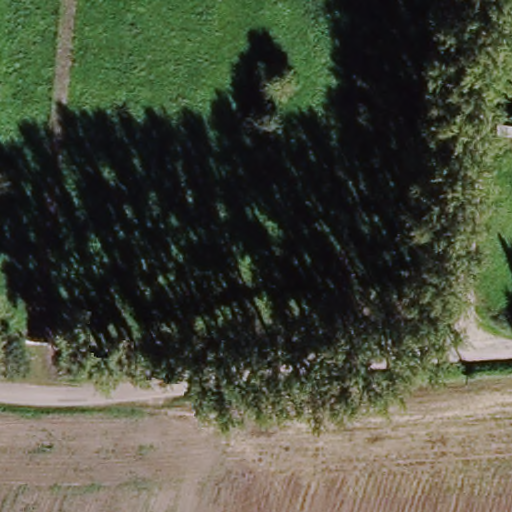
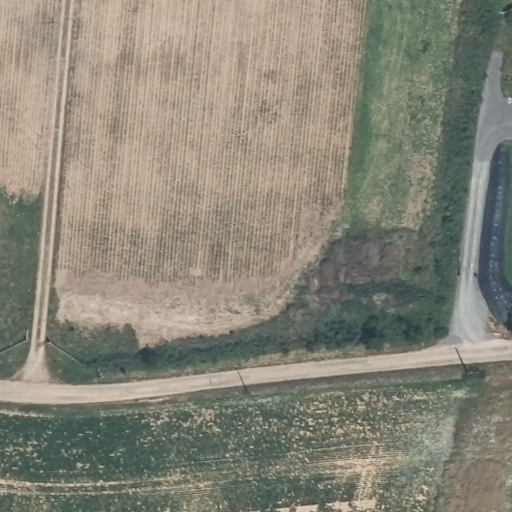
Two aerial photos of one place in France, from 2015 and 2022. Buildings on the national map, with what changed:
unchanged [(505,100),(512,101),(512,125),(502,124),(505,100)]

